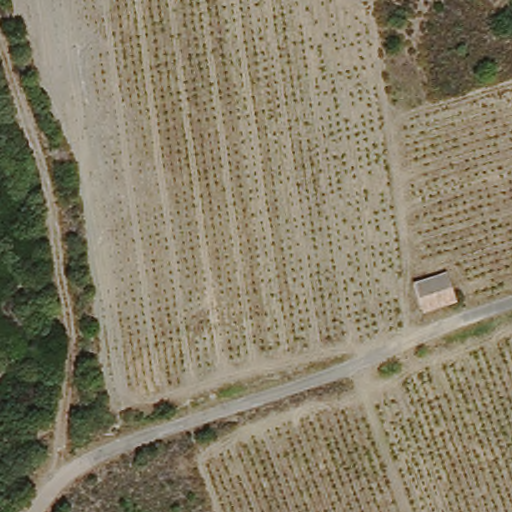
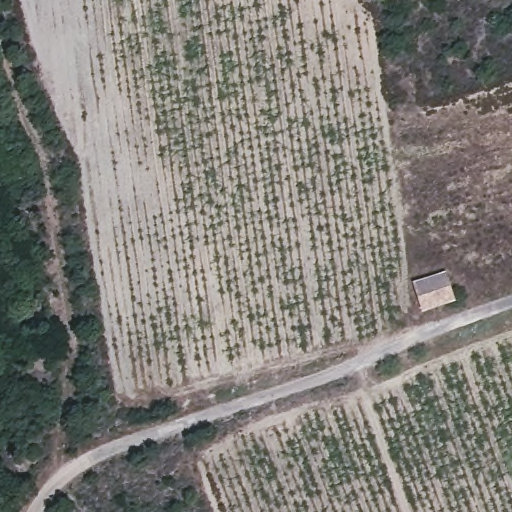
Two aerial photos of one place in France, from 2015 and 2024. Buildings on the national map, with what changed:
unchanged [(444,267),(453,288),(421,301),(409,278),(444,267)]

